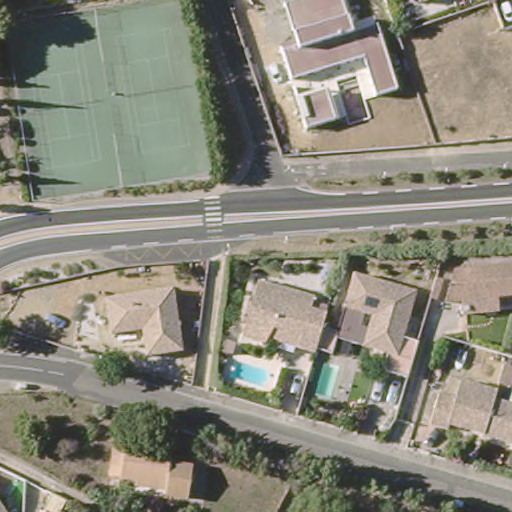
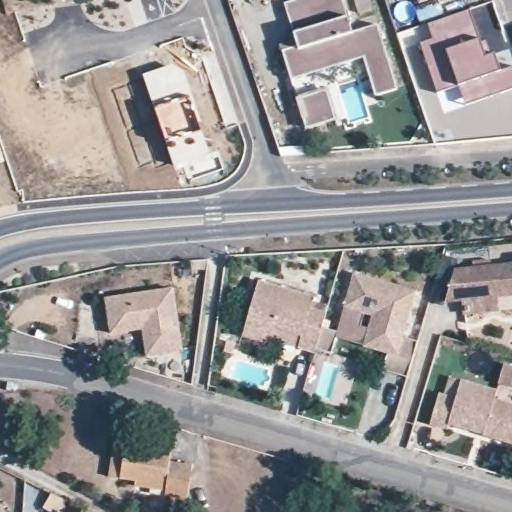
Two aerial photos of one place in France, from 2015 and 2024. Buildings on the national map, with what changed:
unchanged [(282,51),(297,46),(294,34),(285,5),(301,0),(342,0),(348,18),(353,33),(378,26),(397,90),(377,96),(364,58),(292,80),(282,51)]
new [(428,24),(468,10),(479,39),(486,56),(495,54),(500,71),(512,68),(512,89),(465,104),(458,85),(437,92),(420,44),(433,38),(428,24)]
new [(172,65),(185,71),(202,121),(198,123),(202,129),(210,153),(175,166),(167,144),(155,108),(143,75),(172,65)]
unchanged [(297,99),(327,89),(337,120),(307,130),(297,99)]
unchanged [(452,301),(435,296),(443,269),(512,263),(512,291),(485,294),(487,311),(454,314),(452,301)]
unchanged [(392,351),(358,341),(367,312),(339,303),(349,270),(400,286),(410,289),(393,345),(392,351)]
unchanged [(263,343),(240,336),(257,281),(312,298),(309,310),(321,314),(309,352),(292,347),(265,338),(263,343)]
unchanged [(171,288),(178,351),(142,354),(140,328),(107,331),(104,296),(171,288)]
unchanged [(485,404),(512,413),(512,451),(439,428),(437,432),(420,427),(429,398),(446,403),(452,385),(487,396),(485,404)]
unchanged [(142,494),(144,486),(115,480),(120,451),(175,462),(172,473),(195,478),(189,512),(172,512),(165,510),(167,500),(142,494)]
unchanged [(10,512),(0,512),(0,496),(10,512)]

